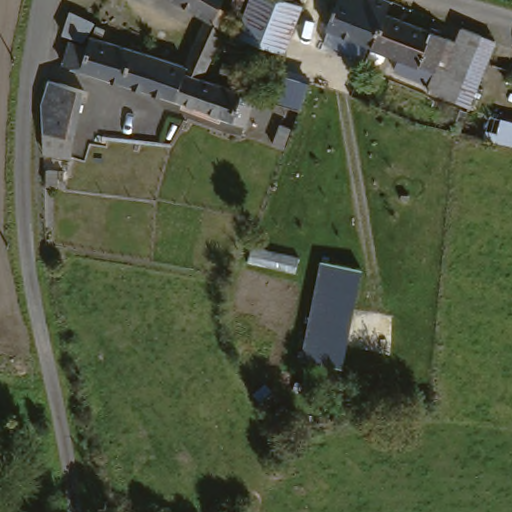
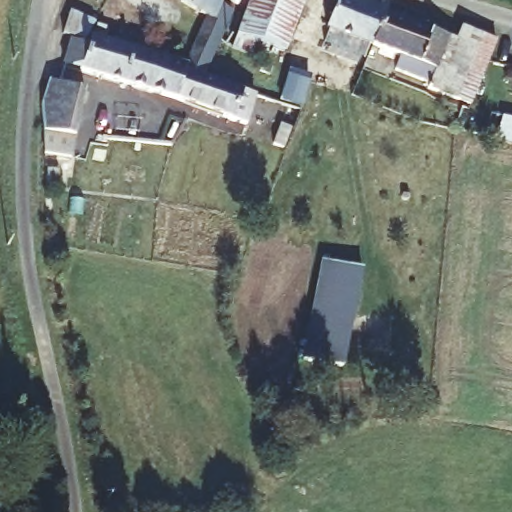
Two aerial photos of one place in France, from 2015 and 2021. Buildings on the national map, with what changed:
unchanged [(218,17),(192,0),(231,0),(228,6),(241,12),(234,27),(215,62),(198,53),(218,17)]
unchanged [(288,64),(235,46),(250,0),(304,0),(312,2),(288,64)]
unchanged [(334,22),(345,2),(345,0),(385,0),(383,9),(393,13),(382,42),(334,22)]
unchanged [(469,42),(475,29),(491,35),(468,96),(439,85),(446,67),(382,42),(393,13),(456,37),(469,42)]
unchanged [(106,36),(139,47),(151,52),(159,55),(173,61),(162,95),(69,61),(76,36),(71,34),(77,15),(98,22),(91,40),(103,44),(106,36)]
unchanged [(190,68),(210,76),(244,88),(237,121),(201,108),(162,95),(173,61),(190,68)]
unchanged [(80,160),(53,155),(53,132),(51,108),(59,84),(91,96),(84,137),(80,160)]
unchanged [(493,127),(503,128),(506,118),(512,119),(512,145),(493,142),(493,127)]
unchanged [(288,126),(280,145),(270,140),(278,122),(288,126)]
unchanged [(321,260),(361,268),(341,367),(302,357),(321,260)]
unchanged [(287,395),(296,407),(279,419),(255,392),(284,369),(299,385),(287,395)]

